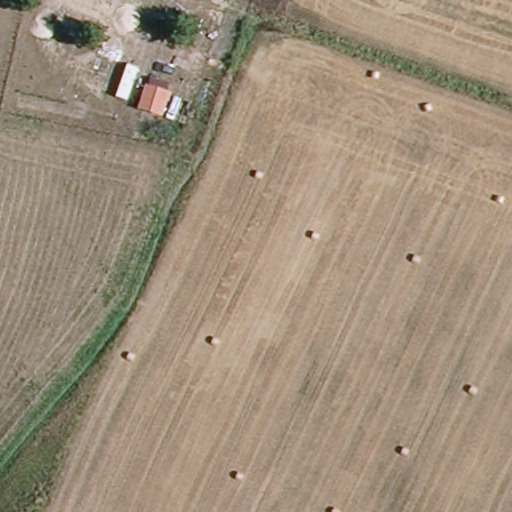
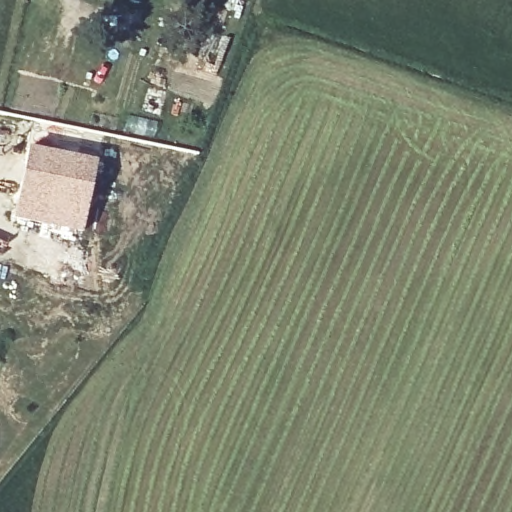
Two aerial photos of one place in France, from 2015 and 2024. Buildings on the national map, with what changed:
unchanged [(173,91),(165,118),(139,110),(147,84),(173,91)]
new [(15,217),(26,147),(95,161),(81,228),(15,217)]

